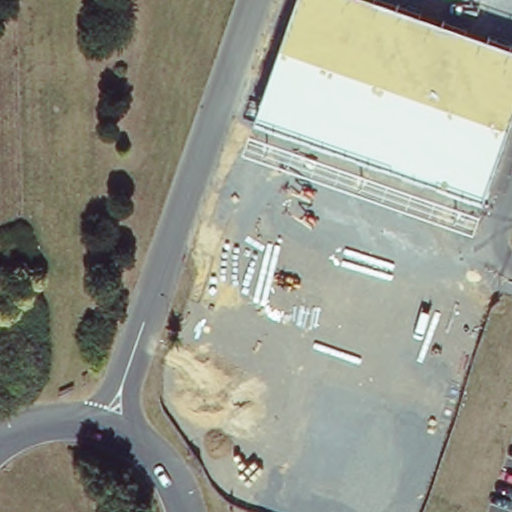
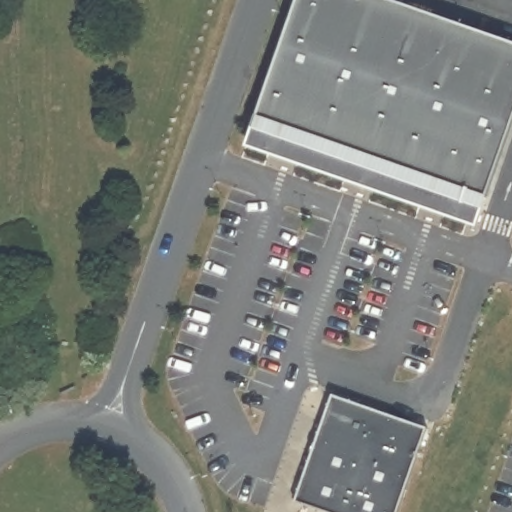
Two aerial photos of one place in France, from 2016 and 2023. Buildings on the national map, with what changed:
unchanged [(477,218),(250,139),(295,0),(404,0),(512,38),(512,115),(477,218)]
new [(422,422),(396,512),(327,512),(293,501),(331,394),(422,422)]

